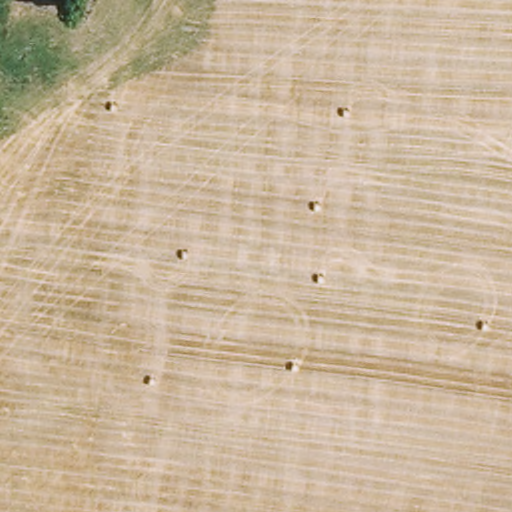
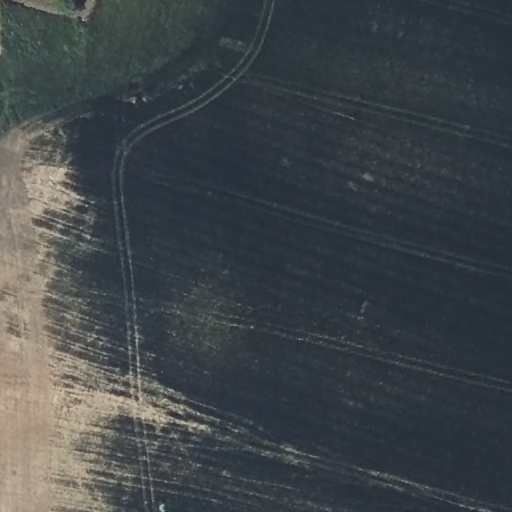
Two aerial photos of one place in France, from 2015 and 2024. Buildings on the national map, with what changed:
[]

